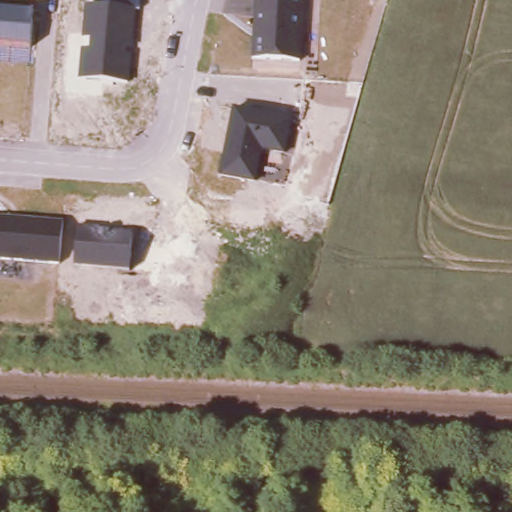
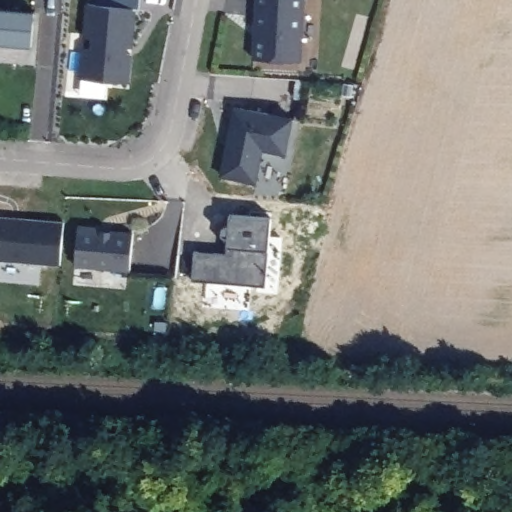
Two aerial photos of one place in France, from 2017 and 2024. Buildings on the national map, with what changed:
unchanged [(81,49),(90,50),(91,39),(82,38),(85,4),(96,5),(96,0),(140,0),(139,10),(136,10),(129,84),(78,79),(81,49)]
unchanged [(302,62),(252,60),(255,0),(304,0),(302,62)]
unchanged [(32,49),(0,46),(0,10),(34,13),(32,49)]
unchanged [(294,118),(286,156),(263,152),(256,184),(219,178),(233,106),(294,118)]
new [(270,247),(266,284),(192,278),(195,250),(225,252),(226,244),(226,238),(223,236),(221,233),(221,230),(222,227),(223,224),(228,223),(230,213),(271,216),(270,247)]
unchanged [(0,262),(0,219),(63,223),(60,267),(0,262)]
unchanged [(130,272),(75,267),(78,227),(132,233),(130,272)]

